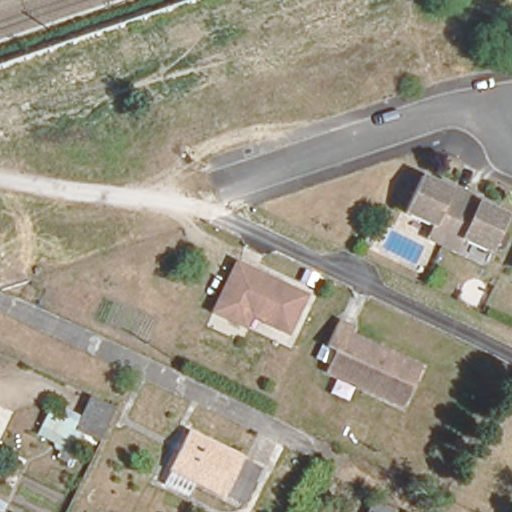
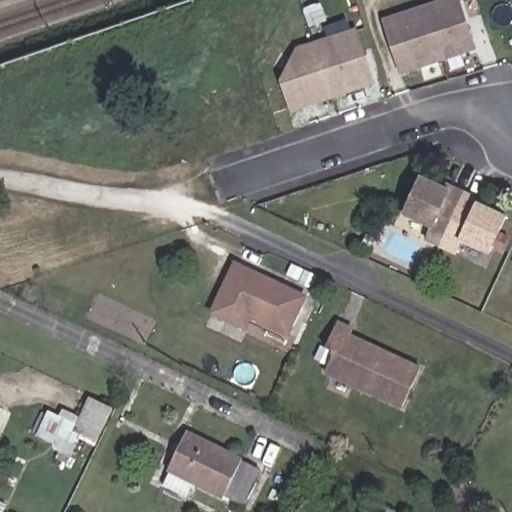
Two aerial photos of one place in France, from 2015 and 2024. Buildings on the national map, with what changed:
new [(399,74),(381,19),(441,0),(460,0),(476,50),(399,74)]
new [(288,111),(278,83),(295,48),(356,28),(375,84),(288,111)]
unchanged [(434,184),(446,189),(476,203),(488,208),(485,214),(501,222),(483,262),(454,249),(459,234),(432,221),(426,236),(396,222),(414,182),(432,190),(434,184)]
unchanged [(310,301),(292,338),(254,320),(249,331),(217,316),(241,267),(310,301)]
unchanged [(351,329),(349,334),(422,367),(403,408),(324,373),(333,351),(324,347),(335,321),(351,329)]
unchanged [(89,396),(93,398),(111,406),(95,438),(81,431),(70,454),(53,446),(55,442),(47,439),(37,434),(48,412),(58,417),(62,409),(79,417),(89,396)]
unchanged [(188,429),(241,457),(240,458),(259,467),(242,502),(223,493),(222,495),(195,482),(187,498),(161,484),(169,469),(188,429)]
unchanged [(6,512),(0,512),(0,502),(8,506),(6,512)]
unchanged [(371,512),(374,505),(387,512),(371,512)]

